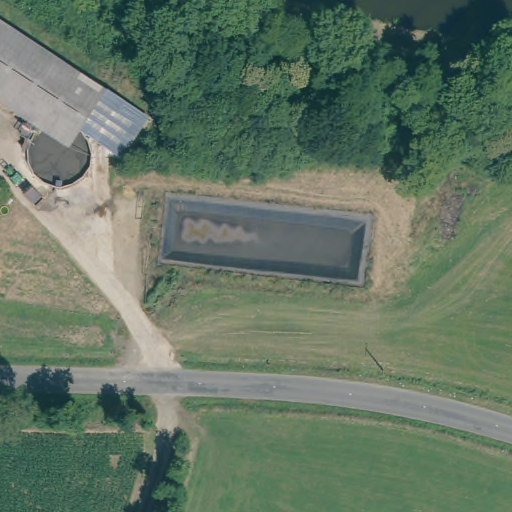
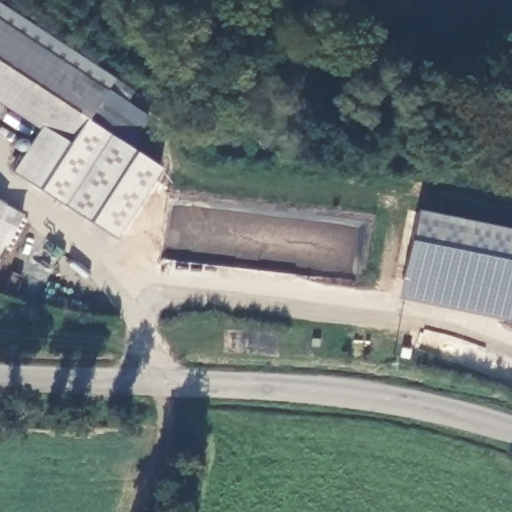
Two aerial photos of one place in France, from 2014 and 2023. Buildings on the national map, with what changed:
unchanged [(26,118),(0,101),(0,24),(50,56),(26,118)]
unchanged [(95,84),(59,139),(26,118),(50,56),(95,84)]
unchanged [(95,84),(106,90),(146,117),(120,155),(81,130),(70,146),(59,139),(95,84)]
new [(59,139),(70,146),(81,130),(120,155),(126,146),(161,168),(115,239),(11,171),(41,127),(59,139)]
new [(398,297),(415,209),(512,229),(512,321),(398,297)]

